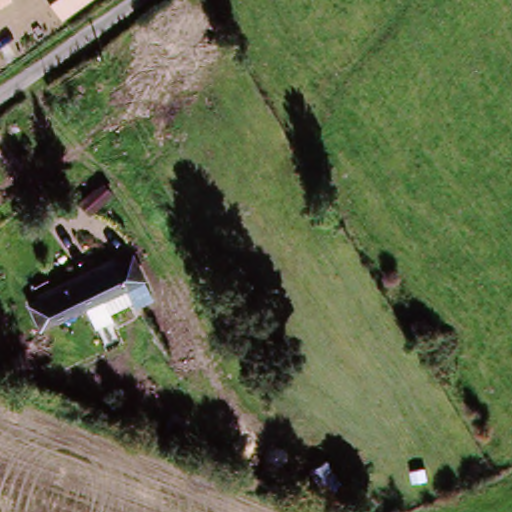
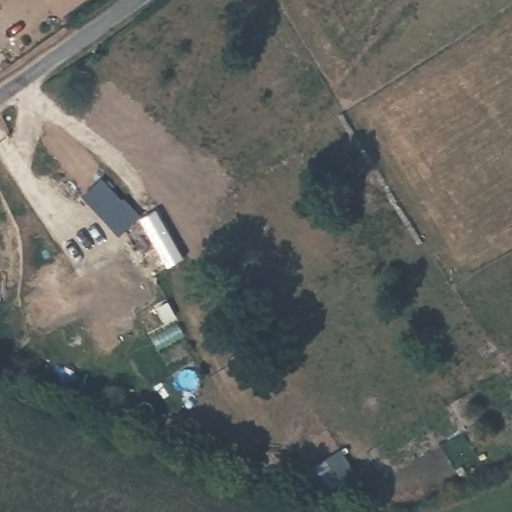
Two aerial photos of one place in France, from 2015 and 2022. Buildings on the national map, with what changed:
unchanged [(14,1),(0,10),(0,0),(13,0),(14,1)]
unchanged [(63,19),(50,0),(90,0),(63,19)]
new [(103,175),(141,215),(121,236),(82,195),(103,175)]
unchanged [(113,311),(98,321),(85,302),(45,327),(30,304),(94,264),(125,246),(139,269),(151,286),(132,296),(130,292),(109,305),(113,311)]
unchanged [(361,493),(347,504),(324,471),(338,461),(361,493)]

